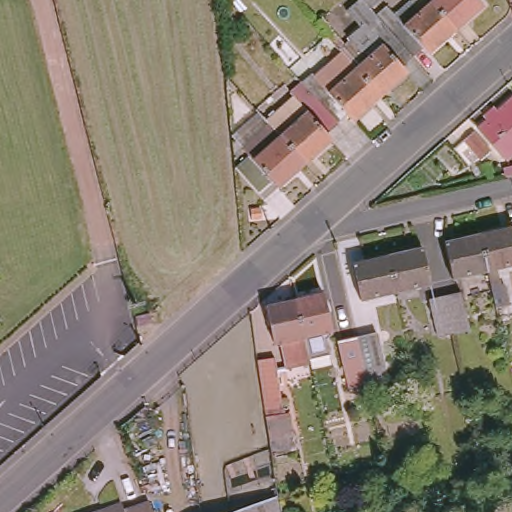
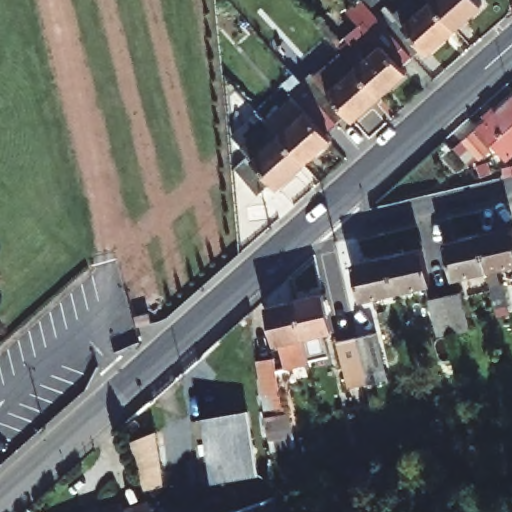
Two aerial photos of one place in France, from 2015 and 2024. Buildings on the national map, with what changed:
unchanged [(312,77),(317,82),(343,58),(354,48),(350,43),(366,30),(359,22),(369,12),(390,35),(401,26),(406,31),(432,7),(426,0),(475,0),(483,9),(456,33),(430,57),(425,52),(414,62),(402,72),(407,77),(381,100),(355,124),(350,119),(339,129),(327,137),(332,143),(306,167),(278,192),(274,186),(259,198),(237,172),(251,160),(236,142),(262,119),(264,121),(292,97),(302,87),(312,77)]
unchanged [(503,151),(478,121),(512,90),(512,143),(503,151)]
unchanged [(494,151),(485,159),(463,134),(472,126),(494,151)]
unchanged [(479,234),(512,225),(512,263),(487,268),(479,234)]
unchanged [(452,277),(444,242),(479,234),(487,268),(452,277)]
unchanged [(395,290),(387,255),(421,247),(429,282),(395,290)]
unchanged [(361,298),(352,263),(387,255),(395,290),(361,298)]
unchanged [(491,285),(504,283),(511,312),(498,315),(491,285)]
unchanged [(293,294),(322,287),(331,325),(302,331),(293,294)]
unchanged [(437,335),(429,300),(445,296),(462,292),(469,328),(452,332),(437,335)]
unchanged [(286,363),(281,336),(273,337),(265,300),(293,294),(302,331),(308,358),(286,363)]
unchanged [(136,315),(150,311),(152,322),(137,326),(136,315)]
unchanged [(336,342),(356,337),(374,333),(382,370),(364,374),(346,378),(336,342)]
unchanged [(255,360),(274,357),(282,405),(262,408),(255,360)]
new [(204,416),(249,408),(259,473),(214,481),(204,416)]
new [(144,491),(130,440),(158,430),(165,485),(144,491)]
unchanged [(233,512),(249,507),(277,496),(278,502),(280,512),(233,512)]
unchanged [(127,510),(151,502),(155,512),(108,512),(125,506),(127,510)]

